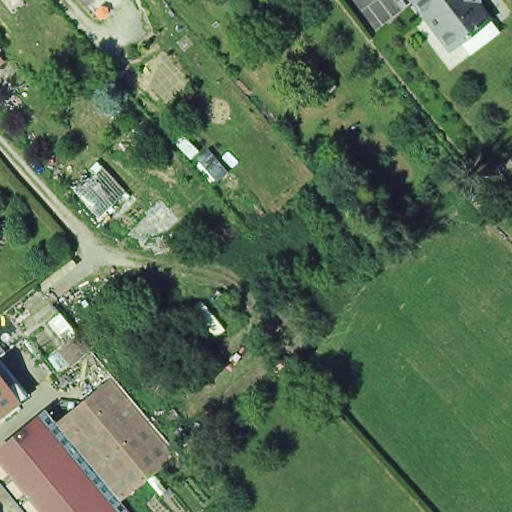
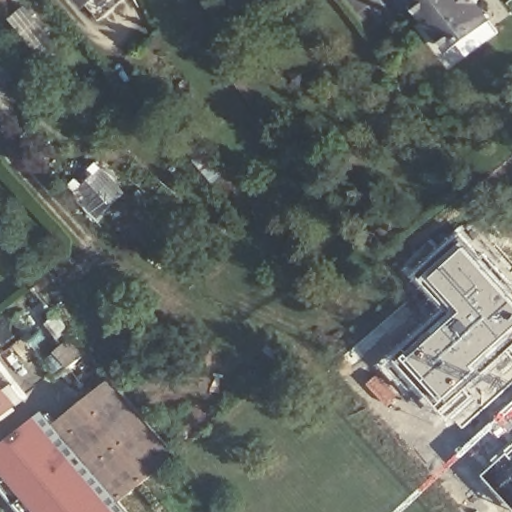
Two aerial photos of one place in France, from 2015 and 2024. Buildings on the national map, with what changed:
unchanged [(88,0),(105,0),(95,9),(88,0)]
unchanged [(455,37),(444,46),(410,0),(472,0),(484,16),(492,27),(463,49),(455,37)]
unchanged [(463,195),(474,186),(501,216),(492,225),(467,198),(463,195)]
new [(413,270),(463,225),(512,279),(512,383),(462,430),(413,384),(410,387),(385,361),(443,306),(413,270)]
unchanged [(58,348),(63,342),(46,320),(58,309),(88,348),(72,363),(58,348)]
unchanged [(0,482),(0,452),(46,410),(52,420),(109,379),(173,461),(117,507),(120,512),(24,512),(0,482)]
unchanged [(0,409),(0,385),(11,400),(0,409)]

